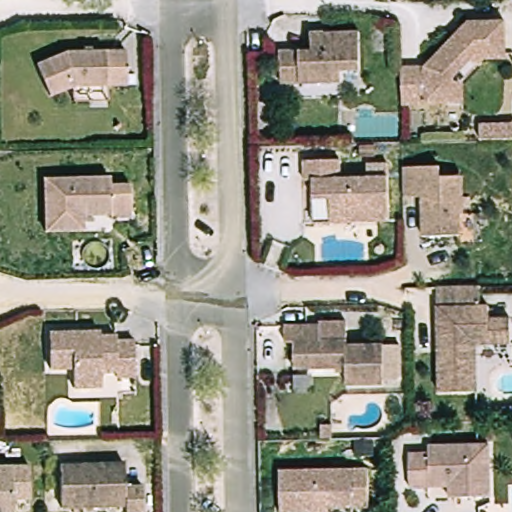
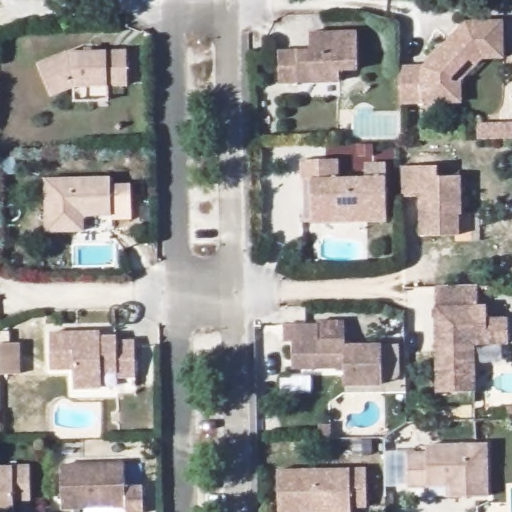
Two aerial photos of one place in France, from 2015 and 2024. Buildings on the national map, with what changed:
unchanged [(445,99),(395,100),(395,63),(418,62),(463,17),(501,16),(502,52),(479,54),(474,61),(459,76),(460,99),(445,99)]
unchanged [(343,75),(279,76),(279,46),(311,46),(311,26),(360,25),(361,62),(343,63),(343,75)]
unchanged [(65,47),(125,46),(126,79),(72,81),(48,91),(35,59),(65,47)]
unchanged [(479,132),(478,117),(512,117),(512,132),(479,132)]
unchanged [(311,200),(311,181),(303,181),(302,161),(339,161),(339,179),(387,178),(388,222),(352,223),(312,224),(311,200)]
unchanged [(421,232),(420,193),(402,194),(402,164),(438,163),(439,173),(461,173),(462,211),(460,211),(460,232),(421,232)]
unchanged [(44,232),(43,179),(109,177),(109,185),(130,185),(130,219),(109,220),(109,216),(81,217),(82,232),(75,231),(44,232)]
unchanged [(488,302),(488,314),(510,314),(510,339),(475,340),(476,387),(438,387),(437,338),(437,313),(436,283),(479,282),(480,302),(488,302)]
unchanged [(291,338),(283,339),(281,322),(316,321),(316,317),(344,317),(345,341),(381,340),(381,380),(344,381),(344,363),(306,364),(291,365),(291,357),(291,338)]
unchanged [(135,373),(115,373),(115,368),(100,368),(100,383),(71,385),(71,365),(48,366),(47,330),(98,328),(98,334),(115,333),(115,338),(133,337),(135,373)]
new [(2,343),(18,343),(18,374),(2,374),(2,343)]
unchanged [(510,412),(510,399),(512,399),(512,411),(510,412)]
unchanged [(451,492),(433,492),(412,492),(412,453),(432,453),(432,447),(493,446),(493,498),(460,498),(452,498),(451,492)]
unchanged [(32,495),(15,495),(15,501),(15,508),(0,509),(0,462),(31,461),(32,495)]
unchanged [(123,486),(141,486),(141,510),(124,511),(124,506),(59,508),(58,465),(122,463),(123,486)]
unchanged [(277,467),(366,466),(367,503),(326,504),(326,510),(278,510),(277,467)]

